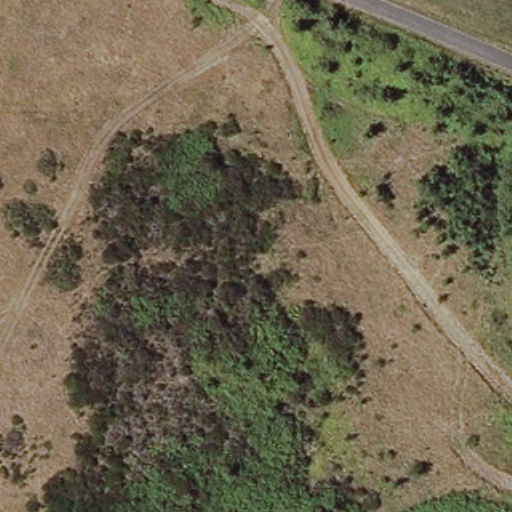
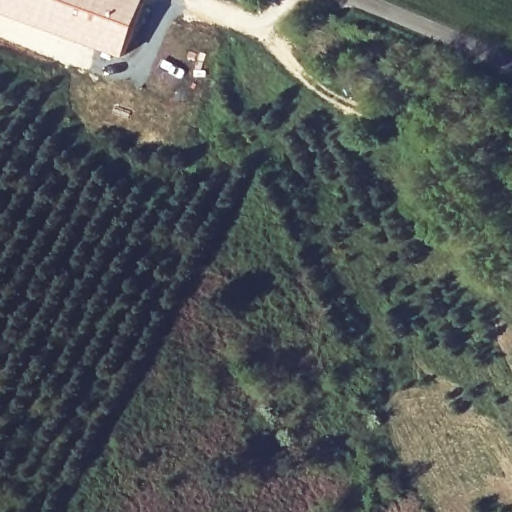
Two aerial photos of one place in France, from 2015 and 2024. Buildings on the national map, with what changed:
new [(125,56),(0,11),(0,0),(146,0),(125,56)]

